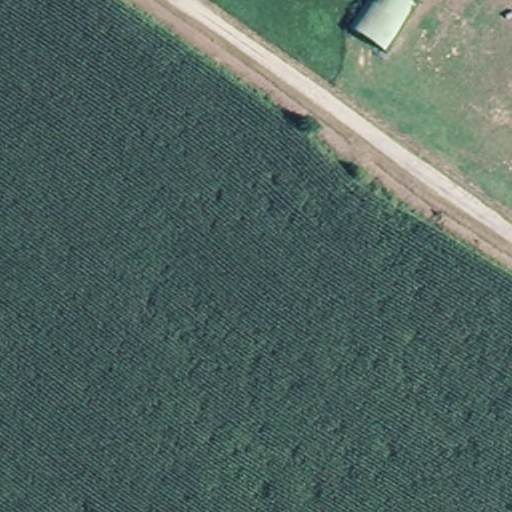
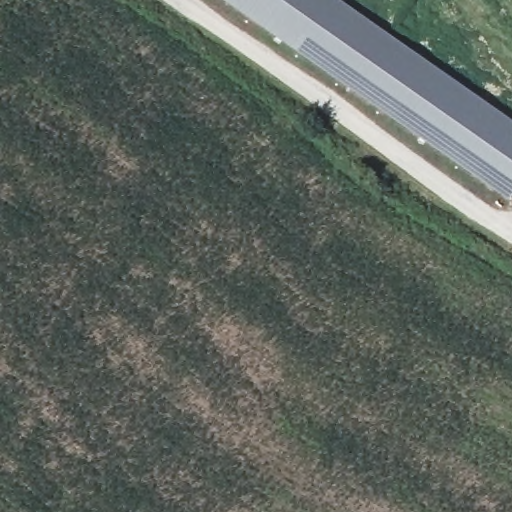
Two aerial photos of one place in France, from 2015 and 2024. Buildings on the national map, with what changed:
new [(512,193),(507,199),(222,0),(337,0),(512,121),(512,193)]
demolished [(355,30),(374,0),(417,0),(418,1),(387,52),(355,30)]

